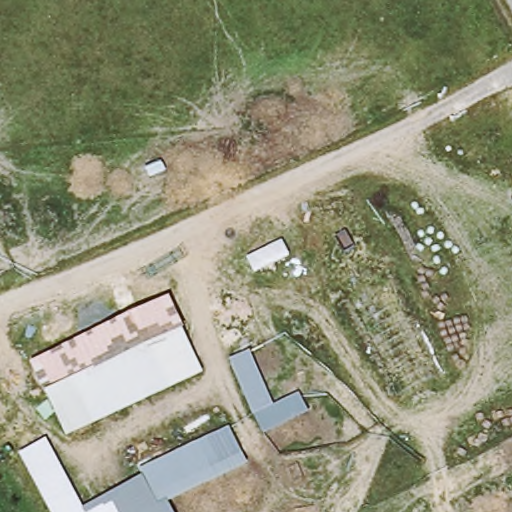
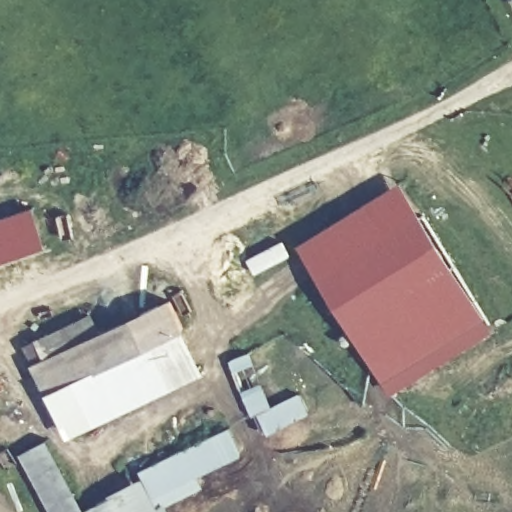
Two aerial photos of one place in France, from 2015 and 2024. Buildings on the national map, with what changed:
new [(389,394),(299,243),(399,181),(492,332),(389,394)]
new [(44,246),(0,261),(0,216),(31,206),(44,246)]
demolished [(349,299),(390,277),(437,377),(394,398),(349,299)]
unchanged [(31,362),(170,297),(204,375),(67,439),(31,362)]
new [(90,310),(100,327),(30,362),(21,343),(90,310)]
unchanged [(250,350),(274,405),(300,394),(309,413),(264,433),(229,360),(250,350)]
unchanged [(228,426),(240,455),(153,497),(142,476),(139,470),(228,426)]
unchanged [(153,497),(240,455),(246,466),(170,503),(175,512),(51,512),(18,451),(46,435),(84,506),(142,476),(153,497)]

